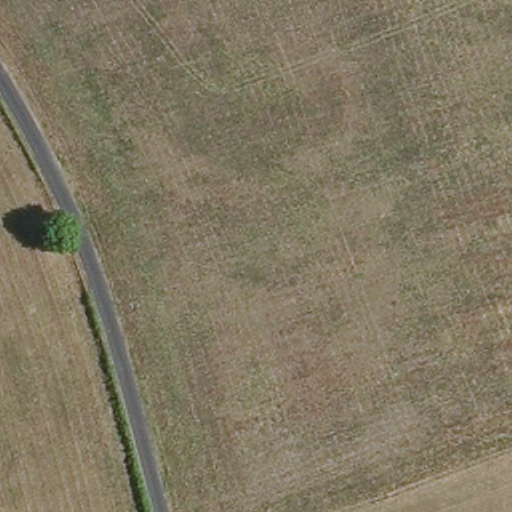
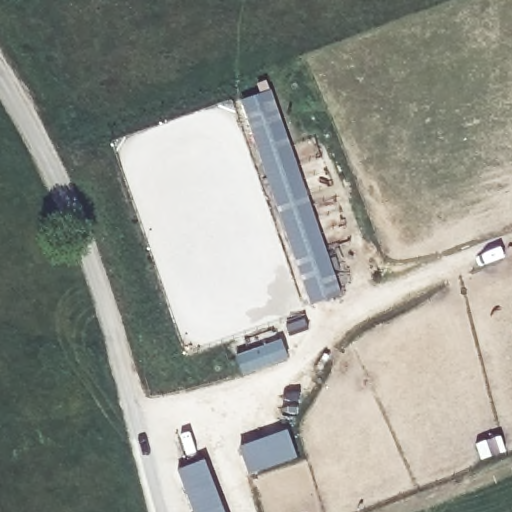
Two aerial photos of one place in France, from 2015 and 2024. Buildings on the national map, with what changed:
new [(311,304),(240,101),(270,90),(340,293),(311,304)]
new [(250,474),(240,447),(288,430),(297,457),(250,474)]
new [(203,459),(224,512),(194,512),(178,470),(203,459)]

